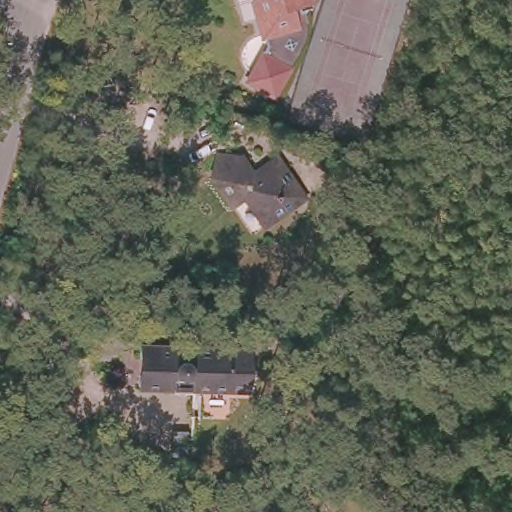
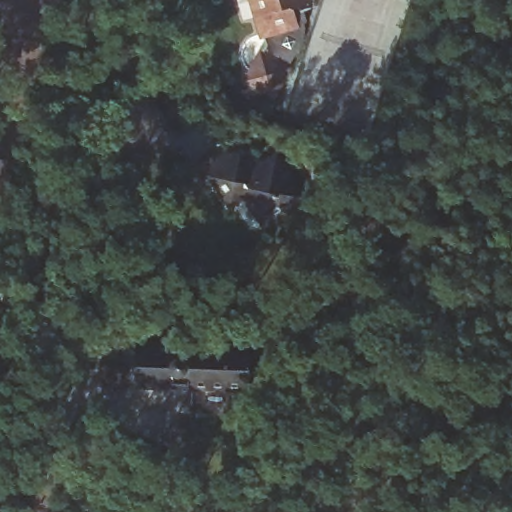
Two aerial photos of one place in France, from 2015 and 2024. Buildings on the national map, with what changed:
unchanged [(301,32),(269,89),(243,77),(261,41),(247,0),(301,0),(298,1),(301,32)]
unchanged [(245,153),(259,170),(283,154),(309,191),(271,215),(249,185),(236,194),(219,171),(245,153)]
unchanged [(198,384),(138,383),(139,341),(251,343),(251,385),(228,385),(198,384)]
unchanged [(178,420),(182,420),(213,422),(213,450),(178,447),(178,420)]

